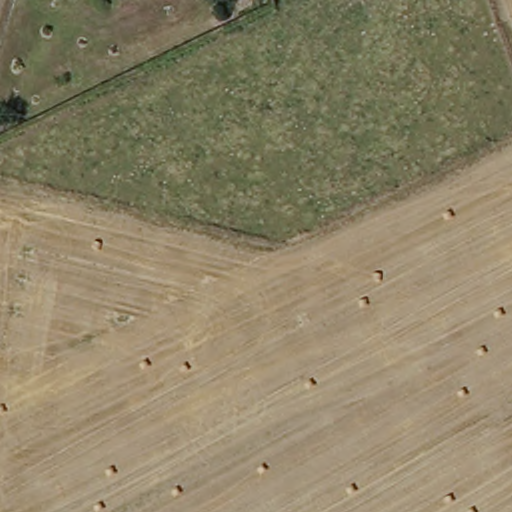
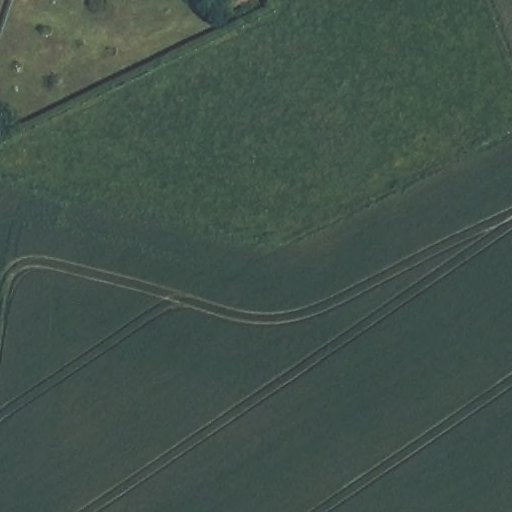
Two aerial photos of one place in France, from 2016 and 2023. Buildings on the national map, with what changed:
[]

